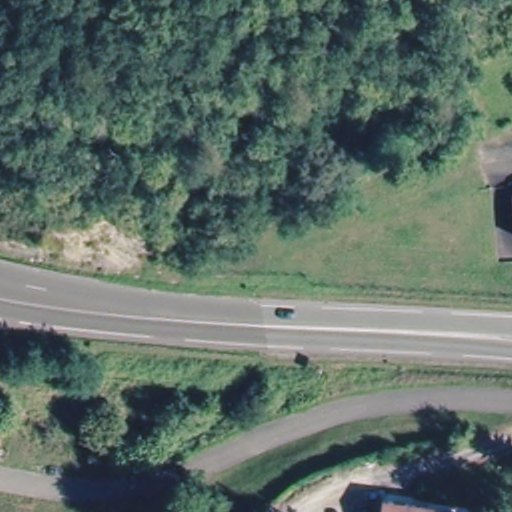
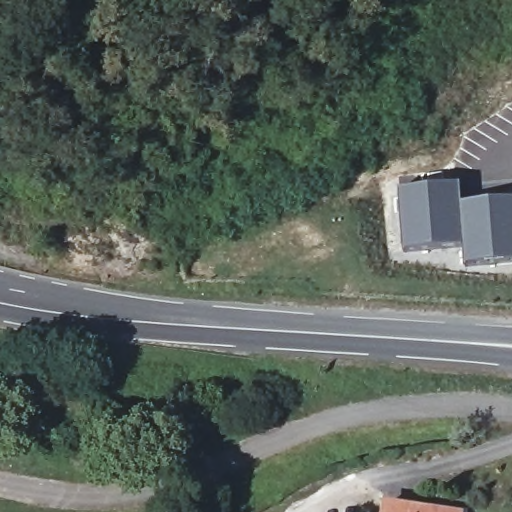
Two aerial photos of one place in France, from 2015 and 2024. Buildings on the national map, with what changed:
new [(512,199),(512,262),(465,266),(463,246),(404,251),(399,188),(460,183),(462,205),(512,199)]
unchanged [(385,498),(401,501),(459,511),(459,512),(383,512),(383,509),(385,498)]

